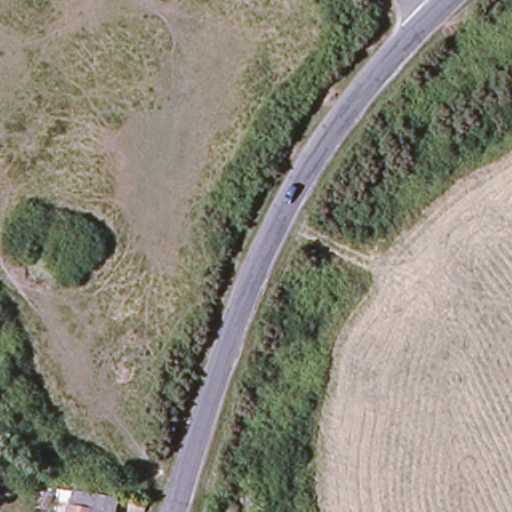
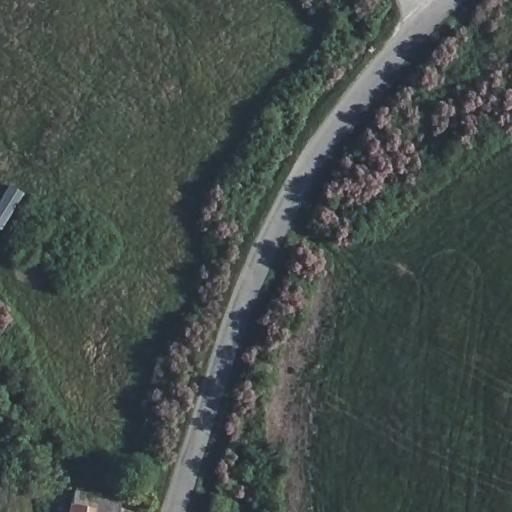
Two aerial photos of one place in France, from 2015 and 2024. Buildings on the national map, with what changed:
unchanged [(69,512),(71,503),(73,489),(119,495),(117,512),(69,512)]

